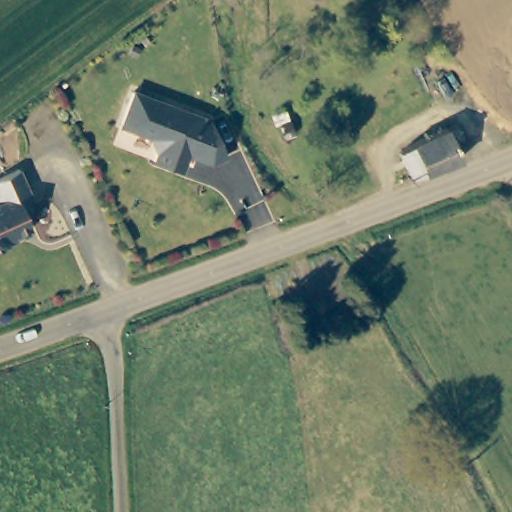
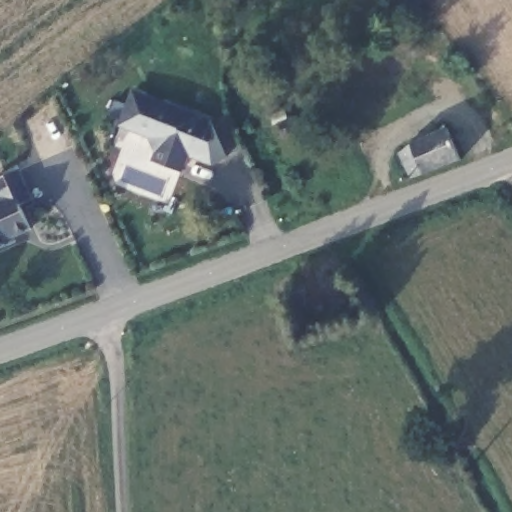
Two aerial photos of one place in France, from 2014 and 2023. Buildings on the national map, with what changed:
unchanged [(217,122),(234,158),(219,165),(194,157),(189,173),(160,163),(164,152),(158,139),(127,128),(141,93),(217,122)]
unchanged [(416,182),(403,156),(451,133),(463,165),(416,182)]
unchanged [(5,204),(0,195),(0,183),(23,170),(38,200),(25,207),(37,231),(12,243),(13,246),(0,253),(0,207),(5,204)]

